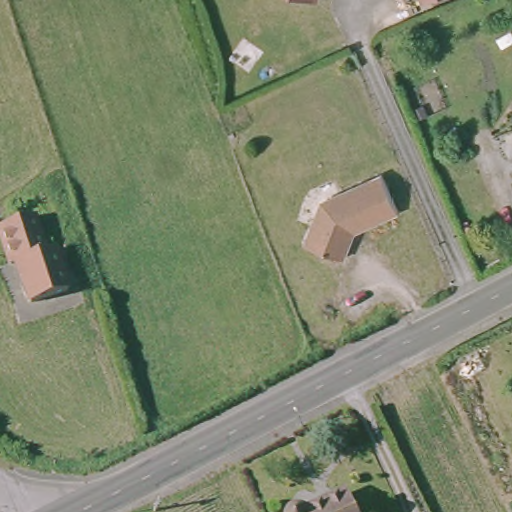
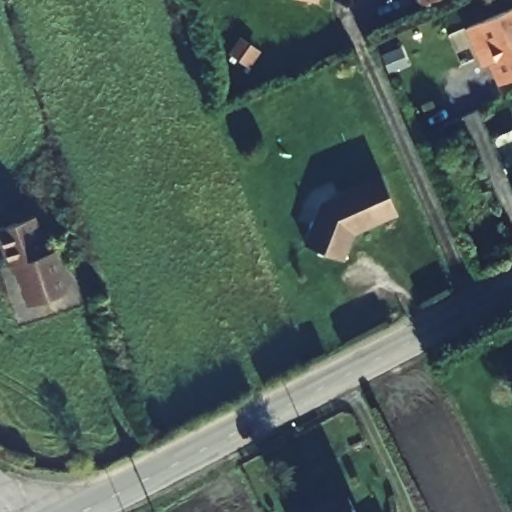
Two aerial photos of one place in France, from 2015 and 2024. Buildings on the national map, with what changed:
unchanged [(421,1),(420,0),(424,0),(421,1)]
new [(489,63),(482,66),(467,28),(512,9),(512,79),(498,84),(489,63)]
unchanged [(355,237),(343,264),(307,248),(325,207),(384,181),(400,217),(355,237)]
unchanged [(0,246),(0,226),(32,215),(45,252),(53,250),(66,291),(27,304),(13,261),(6,264),(0,246)]
unchanged [(357,512),(320,512),(351,498),(357,512)]

